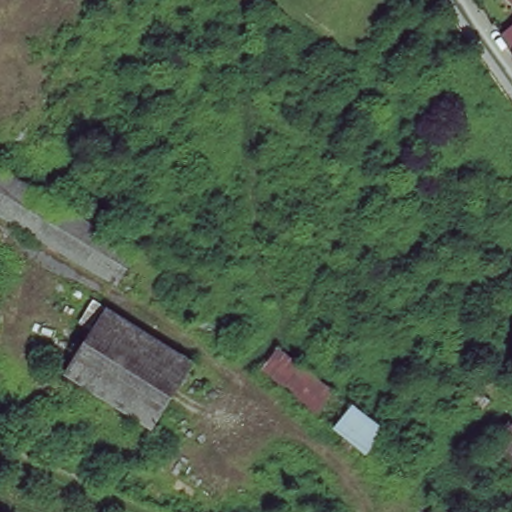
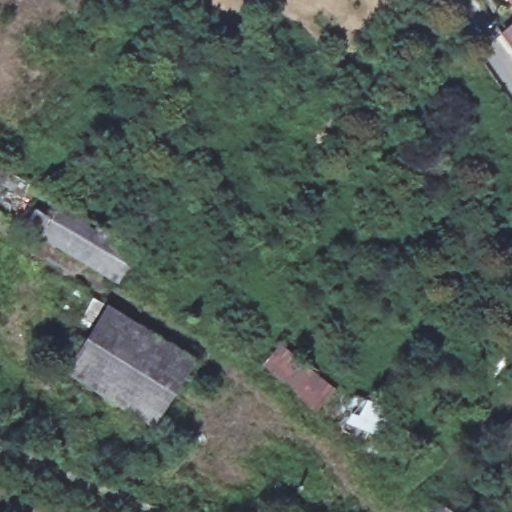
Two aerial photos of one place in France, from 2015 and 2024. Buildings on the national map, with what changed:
unchanged [(512,28),(512,45),(505,35),(512,28)]
unchanged [(121,282),(0,212),(0,166),(8,171),(140,251),(121,282)]
unchanged [(193,363),(153,423),(68,369),(109,310),(193,363)]
unchanged [(502,381),(484,368),(512,329),(512,365),(502,381)]
unchanged [(420,444),(402,467),(260,363),(276,342),(420,444)]
unchanged [(472,512),(457,512),(446,501),(512,430),(512,491),(501,482),(472,512)]

